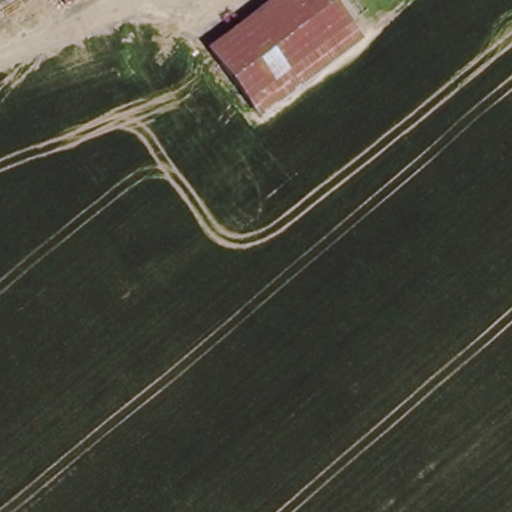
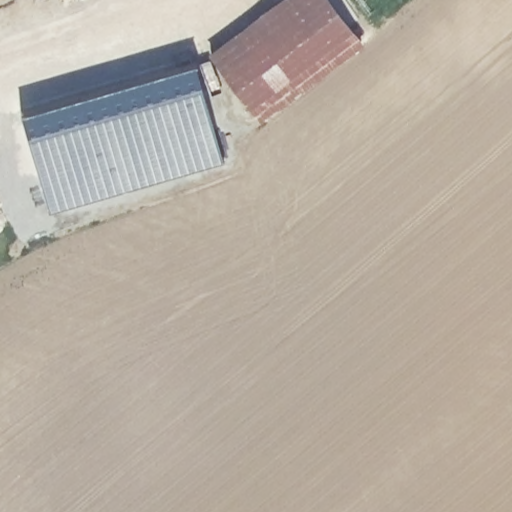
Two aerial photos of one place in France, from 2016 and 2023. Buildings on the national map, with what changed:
unchanged [(327,0),(358,40),(259,116),(208,49),(271,0),(327,0)]
new [(224,158),(48,211),(21,110),(196,59),(224,158)]

